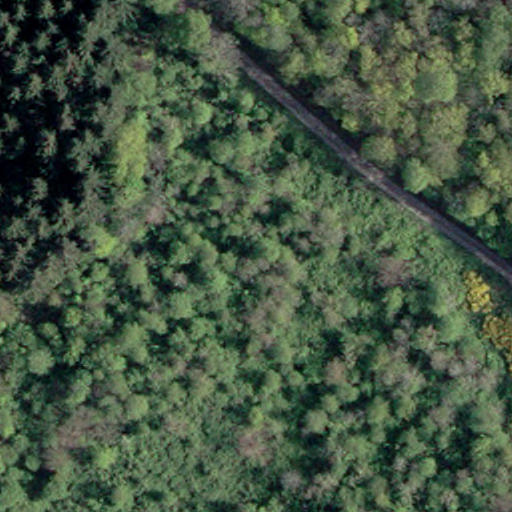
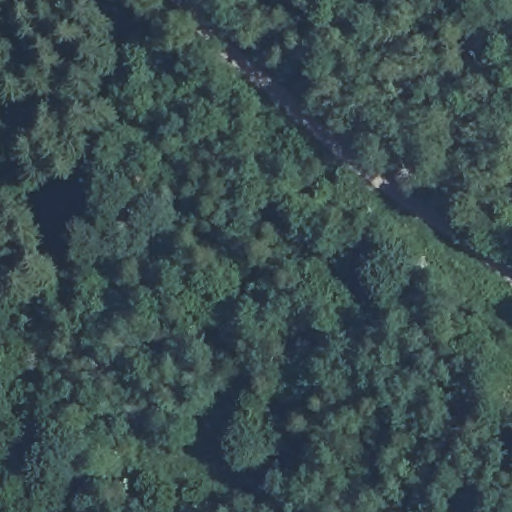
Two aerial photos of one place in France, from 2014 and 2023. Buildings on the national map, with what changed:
[]

